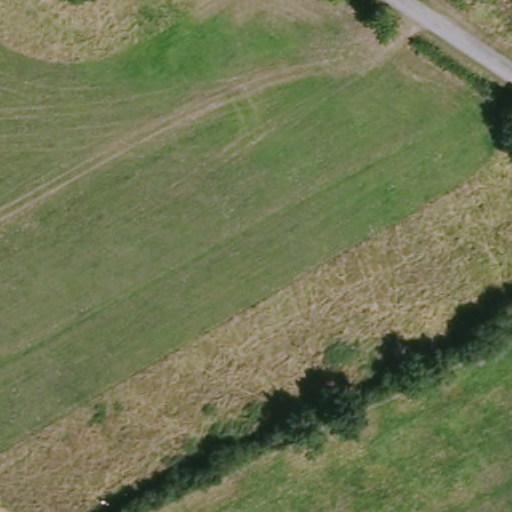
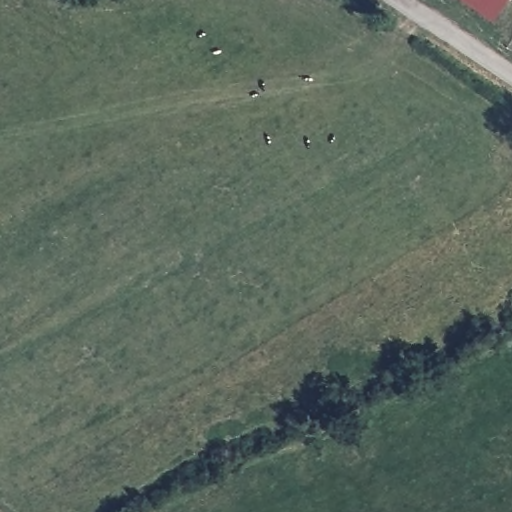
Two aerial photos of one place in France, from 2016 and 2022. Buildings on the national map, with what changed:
new [(468,0),(508,0),(495,19),(468,0)]

